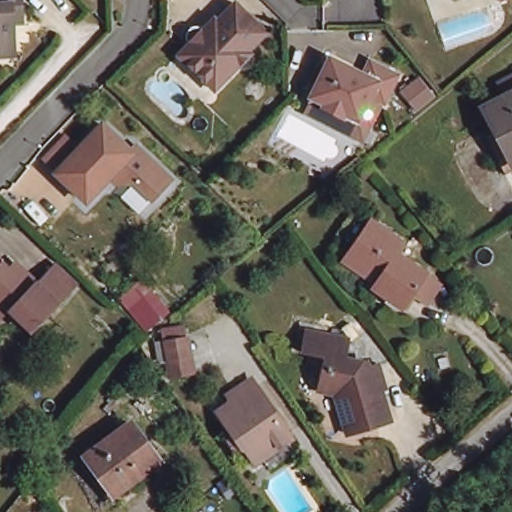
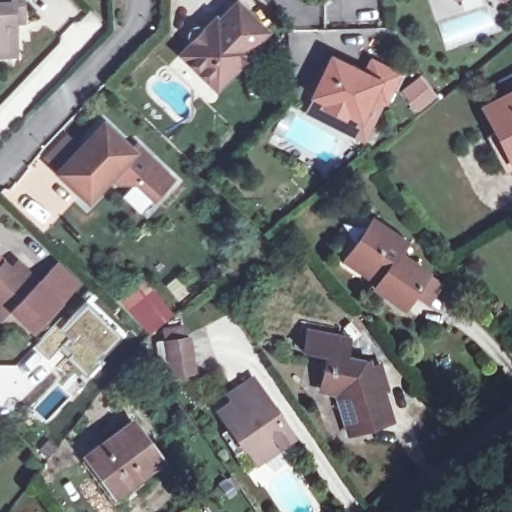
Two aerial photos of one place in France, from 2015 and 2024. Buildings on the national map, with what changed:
unchanged [(0,0),(21,0),(21,15),(22,29),(12,29),(15,63),(0,63),(0,0)]
unchanged [(454,0),(465,0),(458,3),(454,0)]
unchanged [(256,58),(221,94),(184,59),(220,21),(223,26),(242,6),(271,34),(252,54),(256,58)]
unchanged [(305,79),(310,68),(320,63),(323,58),(358,74),(365,60),(392,74),(378,101),(376,100),(355,146),(327,131),(335,117),(316,108),(320,101),(305,95),(309,86),(305,79)]
unchanged [(418,78),(433,95),(417,108),(403,90),(418,78)]
unchanged [(505,90),(512,87),(512,103),(505,90)]
unchanged [(508,179),(491,145),(501,140),(488,117),(512,105),(512,177),(508,179)]
unchanged [(57,177),(103,128),(124,148),(128,144),(163,177),(146,195),(135,185),(116,186),(110,179),(86,204),(57,177)]
unchanged [(298,232),(290,222),(300,214),(308,224),(298,232)]
unchanged [(428,312),(410,300),(402,312),(373,292),(377,287),(345,264),(348,258),(371,224),(405,247),(397,257),(408,264),(426,277),(443,289),(428,312)]
unchanged [(33,335),(11,314),(3,322),(0,319),(0,265),(8,272),(15,265),(36,287),(50,273),(72,294),(33,335)]
unchanged [(146,332),(120,297),(145,279),(172,313),(146,332)]
new [(55,324),(58,328),(87,300),(124,335),(103,357),(107,361),(87,381),(61,358),(56,362),(53,359),(50,363),(33,347),(55,324)]
unchanged [(162,328),(188,324),(190,338),(196,377),(170,384),(164,340),(162,328)]
unchanged [(307,334),(348,343),(345,361),(367,366),(368,369),(378,367),(387,394),(382,395),(391,425),(348,438),(335,397),(319,393),(323,372),(326,359),(303,355),(307,334)]
unchanged [(240,435),(227,414),(240,406),(235,400),(257,385),(295,442),(266,462),(261,465),(240,435)]
unchanged [(120,503),(91,465),(136,432),(165,470),(120,503)]

